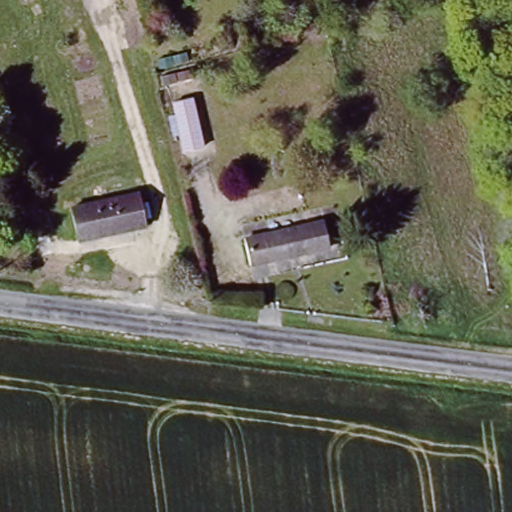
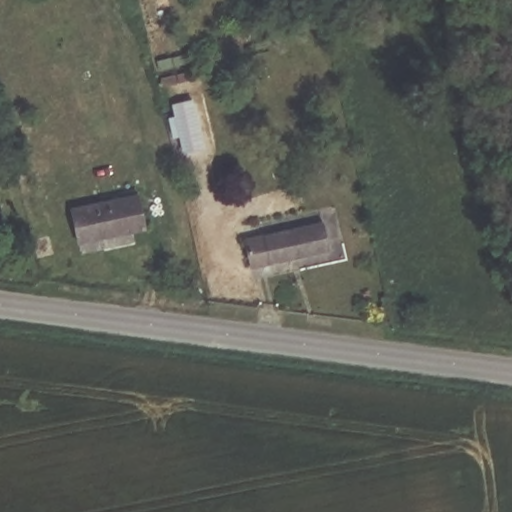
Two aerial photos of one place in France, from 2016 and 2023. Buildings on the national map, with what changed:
unchanged [(158,65),(157,55),(168,54),(169,63),(158,65)]
unchanged [(160,75),(172,74),(173,83),(161,85),(160,75)]
unchanged [(174,103),(195,98),(207,147),(185,154),(174,103)]
unchanged [(141,197),(148,227),(81,244),(74,213),(141,197)]
unchanged [(329,224),(334,245),(258,265),(252,242),(329,224)]

